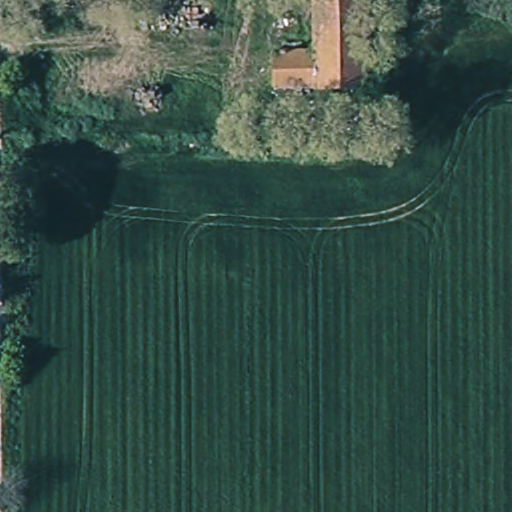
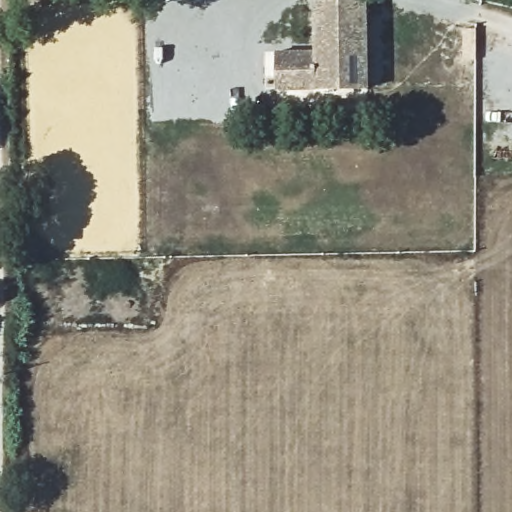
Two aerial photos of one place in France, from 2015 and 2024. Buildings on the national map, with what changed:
unchanged [(367,5),(369,98),(316,99),(276,99),(275,60),(316,60),(315,6),(367,5)]

